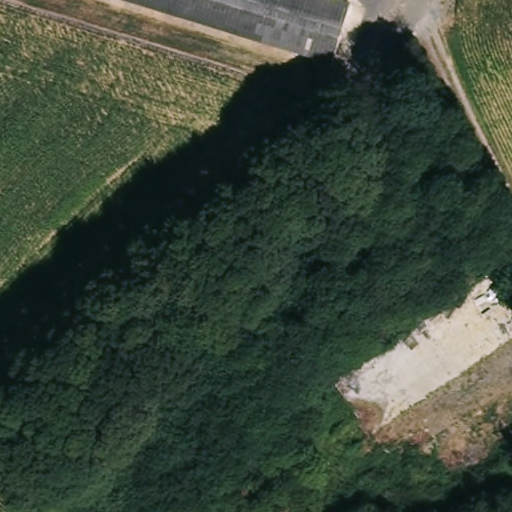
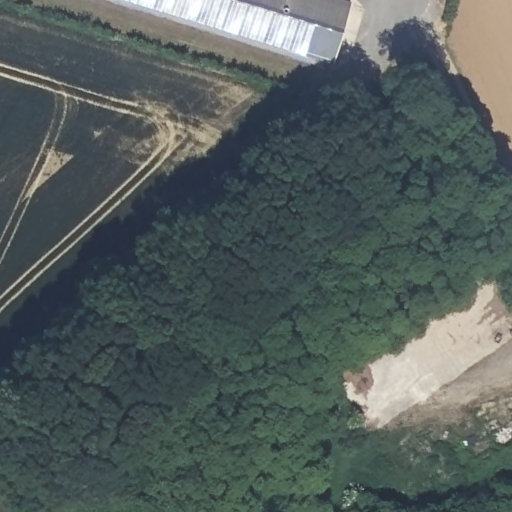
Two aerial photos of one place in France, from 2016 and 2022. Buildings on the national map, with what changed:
unchanged [(337,56),(150,0),(349,0),(354,1),(337,56)]

